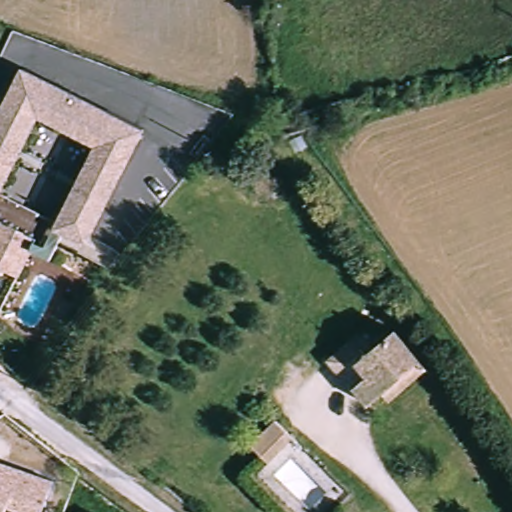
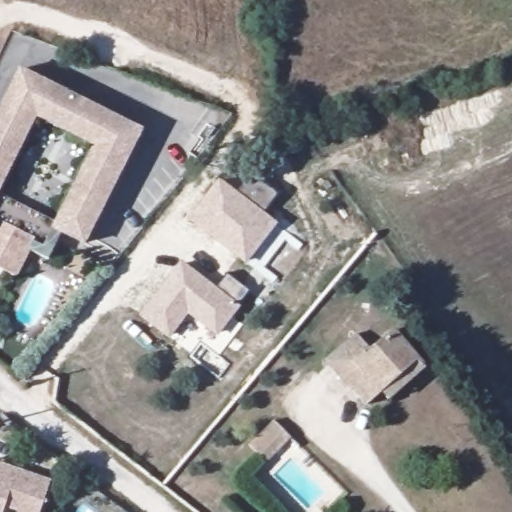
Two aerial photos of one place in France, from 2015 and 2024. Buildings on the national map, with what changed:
unchanged [(22,69),(148,133),(91,246),(66,234),(68,229),(104,152),(40,122),(16,172),(1,166),(0,167),(0,112),(22,69)]
unchanged [(66,234),(50,261),(28,252),(16,278),(0,270),(0,167),(1,166),(16,172),(0,197),(68,229),(66,234)]
new [(237,192),(251,173),(278,195),(264,213),(277,223),(247,265),(187,219),(219,178),(237,192)]
new [(217,337),(189,315),(169,339),(139,316),(181,261),(217,288),(228,274),(249,291),(237,304),(241,307),(217,337)]
unchanged [(392,329),(417,357),(364,408),(347,392),(361,376),(353,367),(369,351),(392,329)]
unchanged [(347,392),(321,365),(352,334),(369,351),(353,367),(361,376),(347,392)]
unchanged [(291,440),(263,465),(243,445),(268,418),(291,440)]
unchanged [(42,512),(15,512),(6,510),(5,512),(0,512),(0,462),(53,481),(42,512)]

